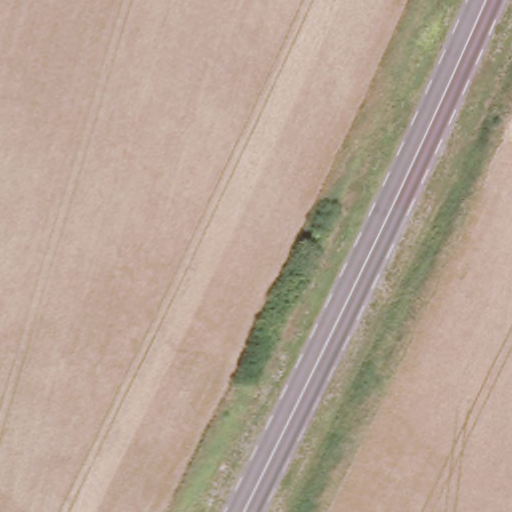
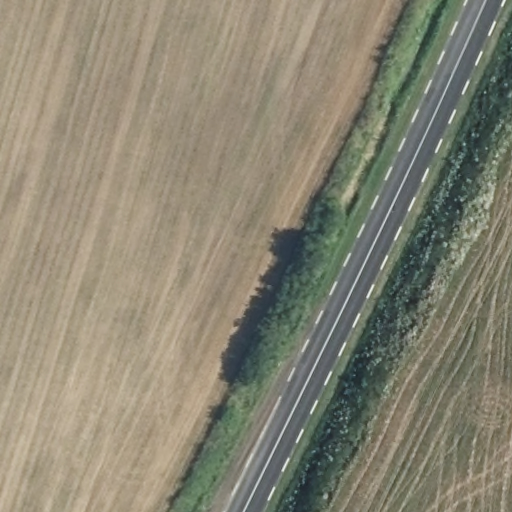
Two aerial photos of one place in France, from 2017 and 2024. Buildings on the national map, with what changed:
[]

